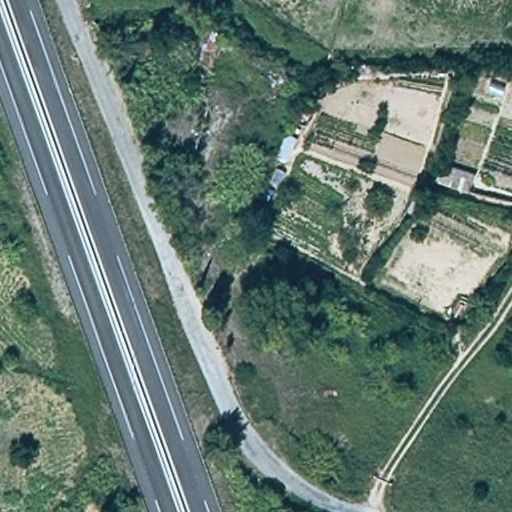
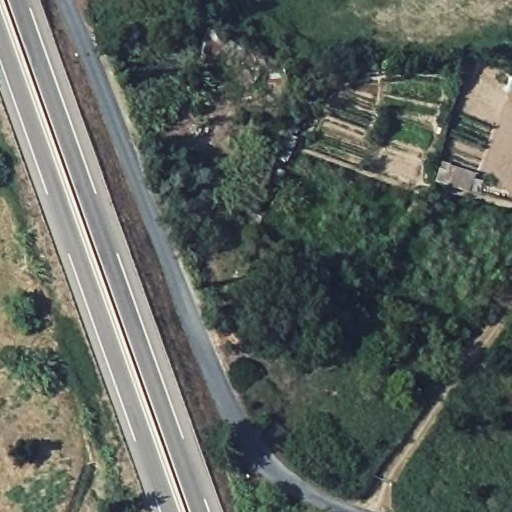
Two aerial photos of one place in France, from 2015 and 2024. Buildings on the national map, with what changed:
unchanged [(298,135),(287,161),(273,154),(281,132),(298,135)]

